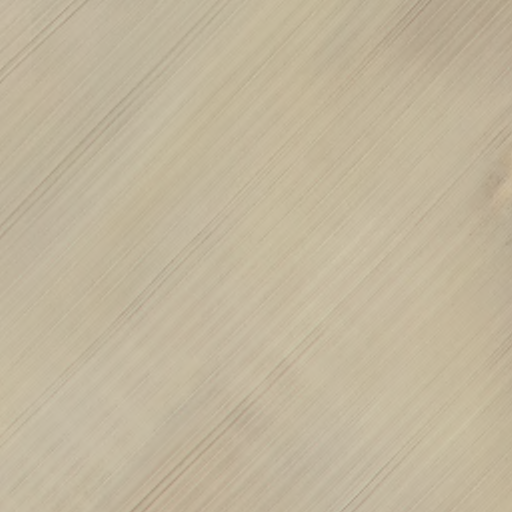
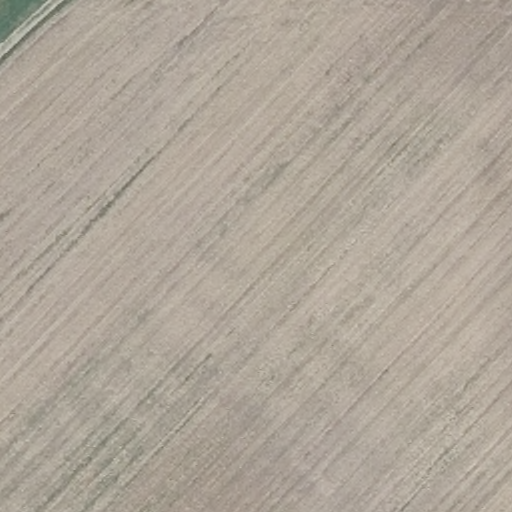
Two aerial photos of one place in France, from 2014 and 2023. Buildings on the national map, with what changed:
[]

